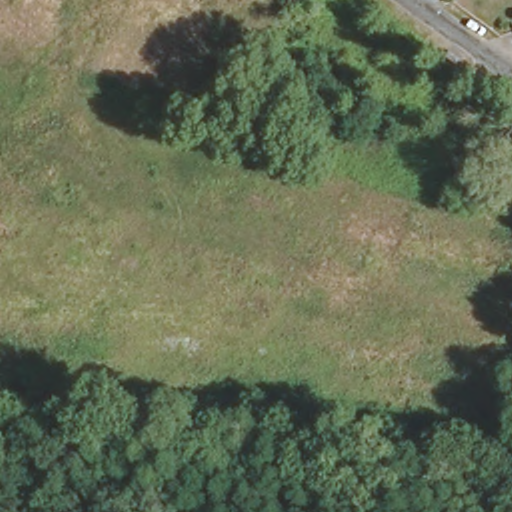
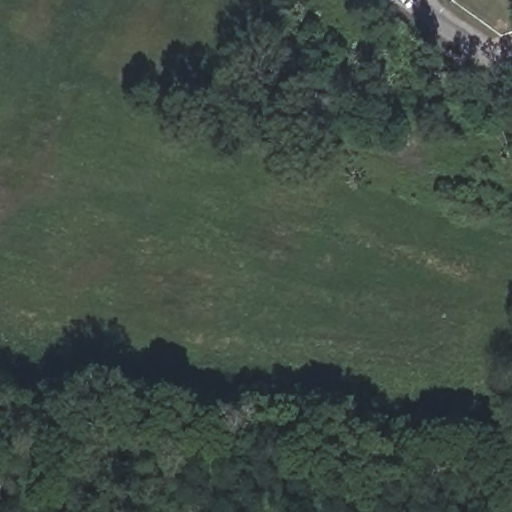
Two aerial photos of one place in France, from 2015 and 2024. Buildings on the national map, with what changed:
[]

